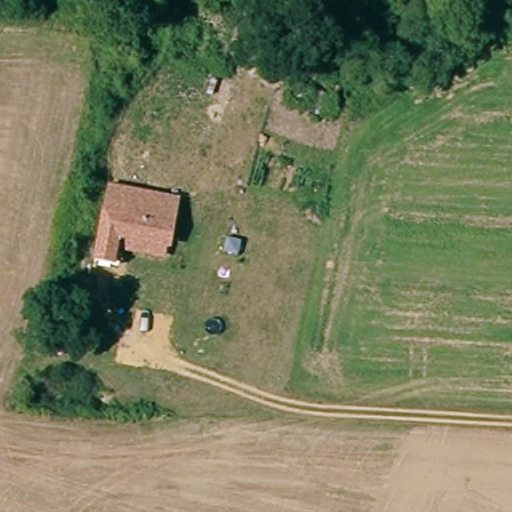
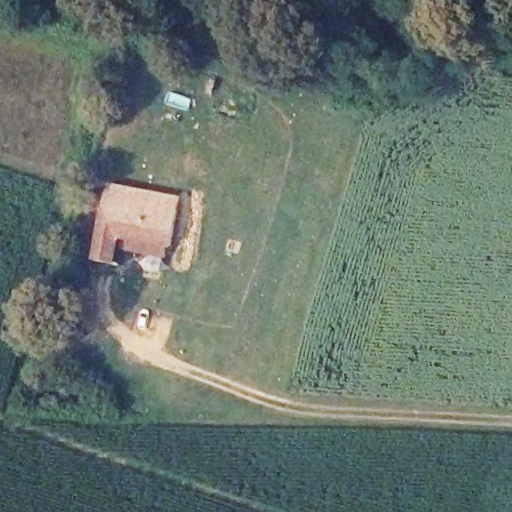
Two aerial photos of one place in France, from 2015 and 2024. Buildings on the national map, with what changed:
unchanged [(112,185),(179,197),(171,245),(122,238),(119,265),(98,261),(106,216),(112,185)]

